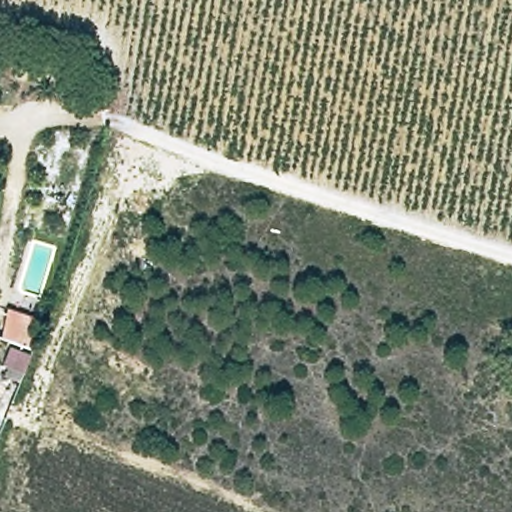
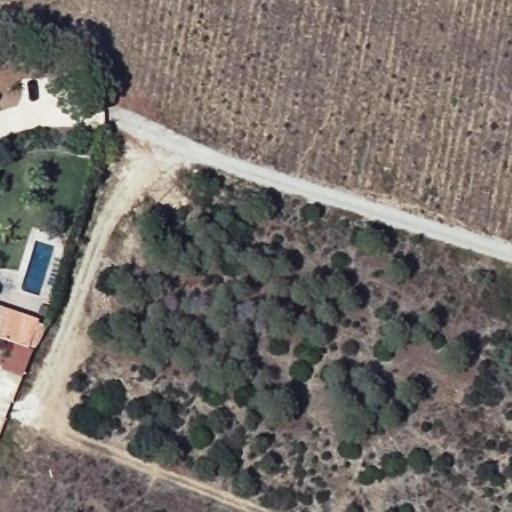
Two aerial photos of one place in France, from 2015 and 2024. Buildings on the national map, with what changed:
unchanged [(37,323),(47,327),(34,351),(32,350),(20,379),(0,371),(10,344),(0,341),(0,307),(39,320),(37,323)]

